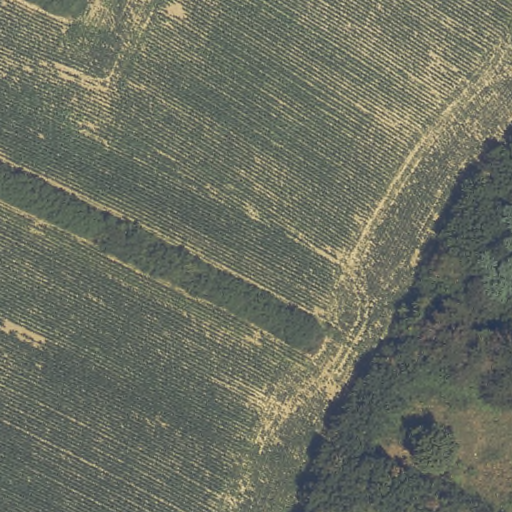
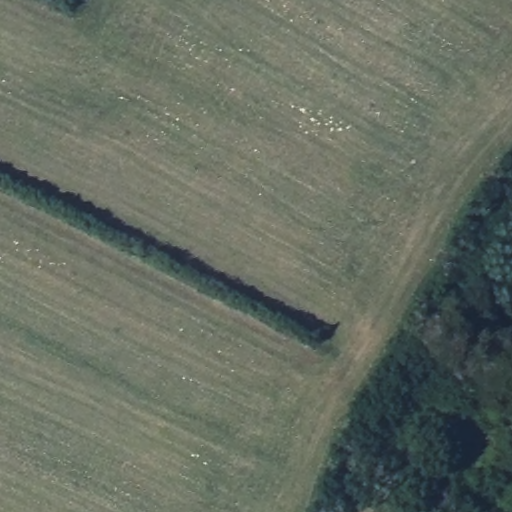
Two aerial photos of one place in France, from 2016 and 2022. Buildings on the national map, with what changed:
unchanged [(501,207),(490,201),(498,184),(509,191),(501,207)]
unchanged [(343,461),(348,451),(368,462),(363,472),(352,466),(343,461)]

